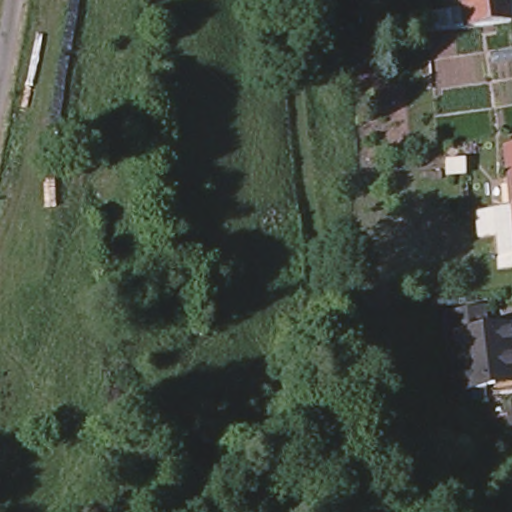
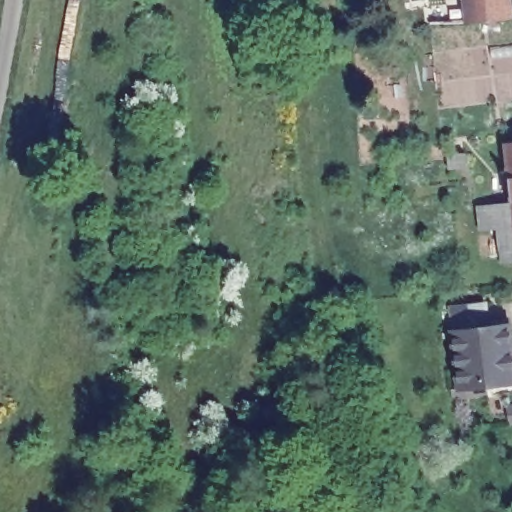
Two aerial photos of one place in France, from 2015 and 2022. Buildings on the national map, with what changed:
unchanged [(467,17),(465,0),(510,0),(512,13),(467,17)]
unchanged [(459,7),(460,18),(445,19),(444,8),(459,7)]
unchanged [(498,255),(493,212),(496,212),(495,203),(511,202),(505,142),(512,142),(512,262),(498,263),(498,255)]
unchanged [(465,154),(465,166),(448,166),(447,154),(465,154)]
unchanged [(512,341),(512,384),(485,391),(485,386),(460,390),(450,332),(445,307),(480,302),(483,325),(499,323),(510,322),(512,341)]
unchanged [(507,407),(512,406),(512,424),(510,425),(507,407)]

